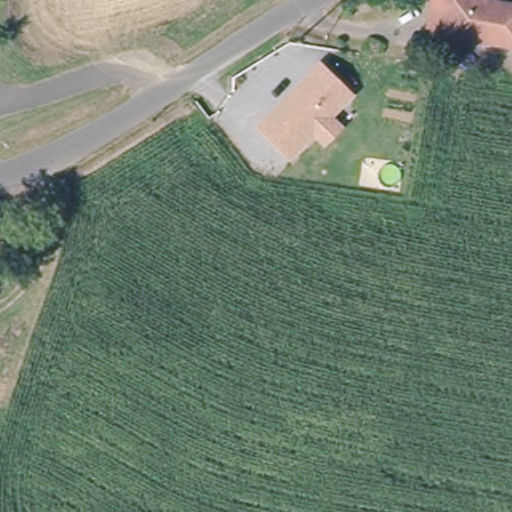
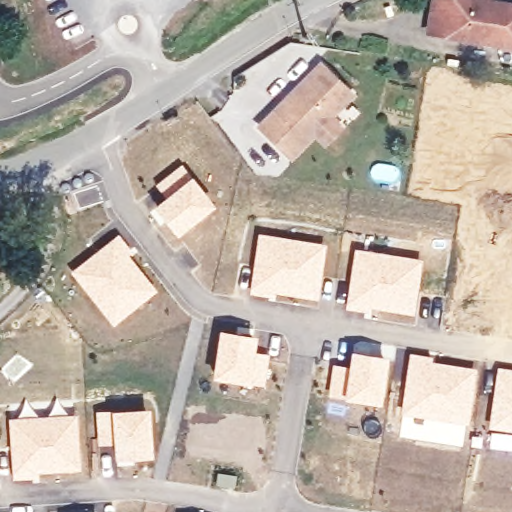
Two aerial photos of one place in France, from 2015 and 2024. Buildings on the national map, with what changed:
unchanged [(432,0),(490,0),(512,3),(512,46),(427,34),(432,0)]
unchanged [(323,140),(313,130),(290,154),(257,126),(318,62),(349,91),(328,113),(339,125),(323,140)]
new [(164,195),(155,184),(180,163),(214,205),(175,235),(152,206),(164,195)]
new [(257,233),(326,244),(317,301),(249,293),(257,233)]
new [(117,234),(155,290),(112,325),(70,271),(117,234)]
new [(353,248),(421,259),(413,319),(344,309),(353,248)]
new [(217,329),(255,336),(254,351),(268,354),(262,387),(210,378),(217,329)]
new [(331,363),(345,365),(349,349),(386,356),(379,404),(326,394),(331,363)]
new [(408,353),(432,357),(432,359),(475,368),(466,425),(400,414),(408,353)]
new [(512,369),(512,431),(486,428),(495,367),(512,369)]
new [(148,409),(152,457),(115,463),(112,444),(97,445),(95,412),(148,409)]
new [(75,415),(80,470),(37,474),(12,479),(7,419),(75,415)]

